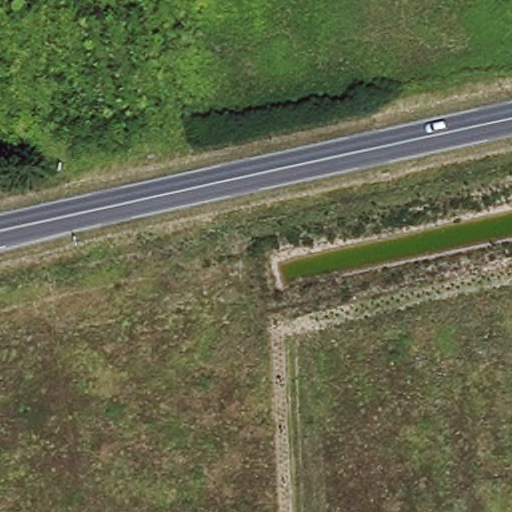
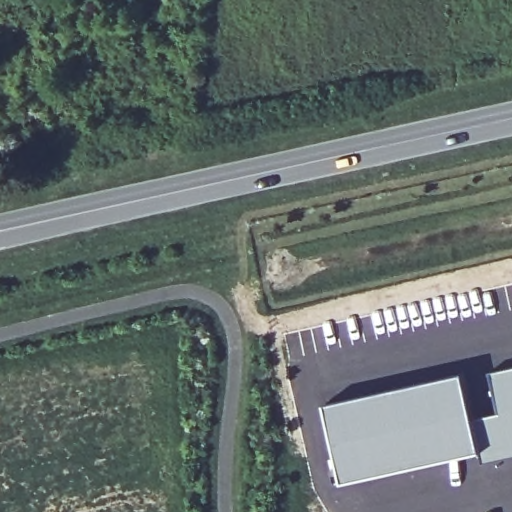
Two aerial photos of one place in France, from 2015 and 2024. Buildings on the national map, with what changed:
new [(498,411),(490,371),(512,366),(512,456),(483,462),(482,453),(475,416),(498,411)]
new [(464,372),(475,416),(482,453),(343,484),(323,403),(464,372)]

